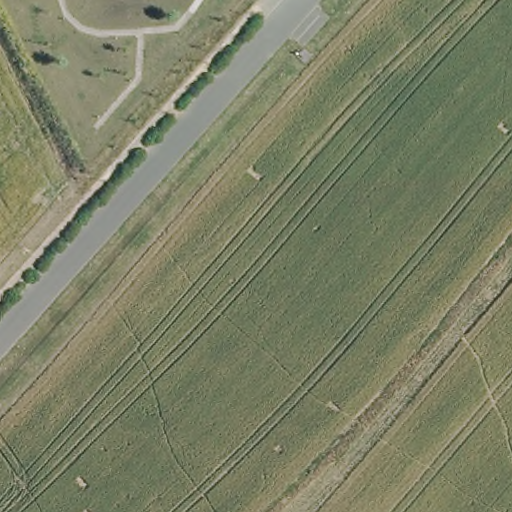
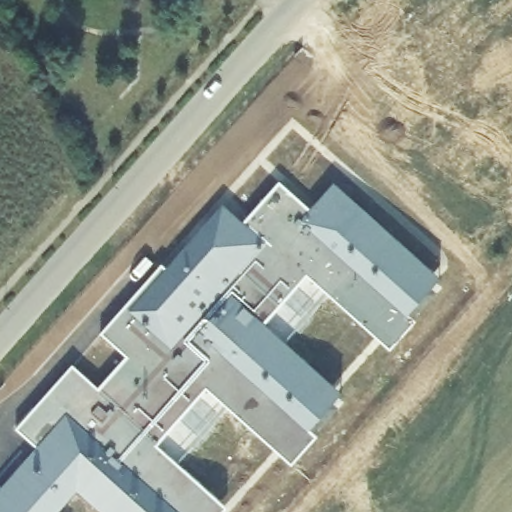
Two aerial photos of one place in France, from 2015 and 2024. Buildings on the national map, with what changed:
new [(278,180),(311,210),(334,181),(440,277),(410,314),(416,320),(390,349),(306,272),(264,322),(341,393),(312,428),(320,436),(293,465),(207,388),(158,445),(227,506),(223,512),(101,512),(76,490),(59,512),(0,512),(0,490),(37,446),(16,430),(72,366),(98,390),(127,356),(101,332),(161,265),(165,269),(223,205),(242,224),(278,180)]

